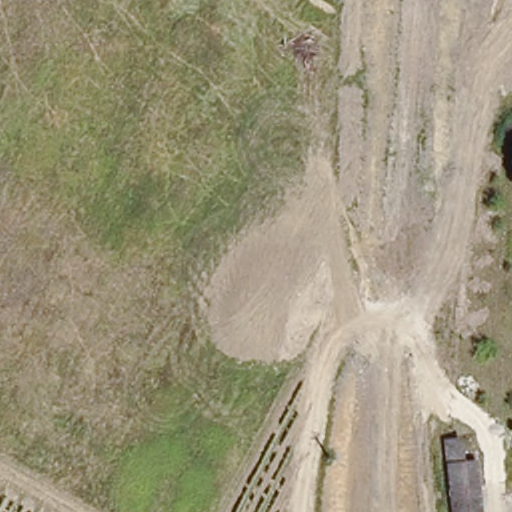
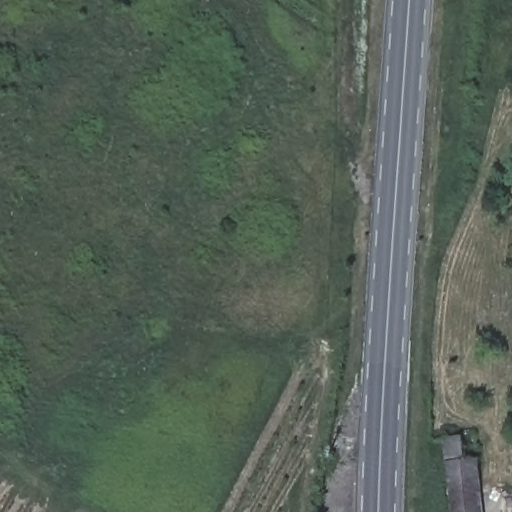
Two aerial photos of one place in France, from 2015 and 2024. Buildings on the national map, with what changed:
unchanged [(474,461),(480,512),(452,512),(444,440),(458,439),(461,463),(474,461)]

